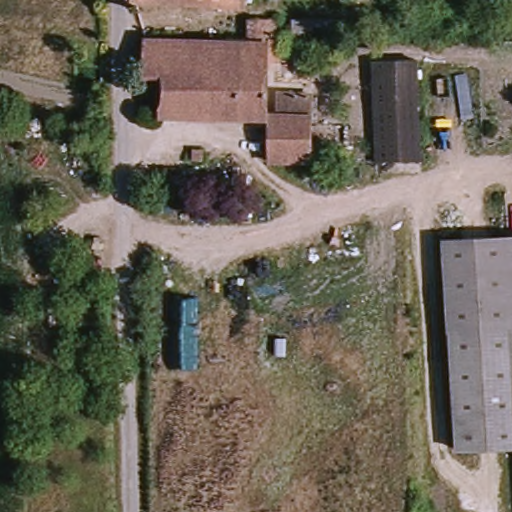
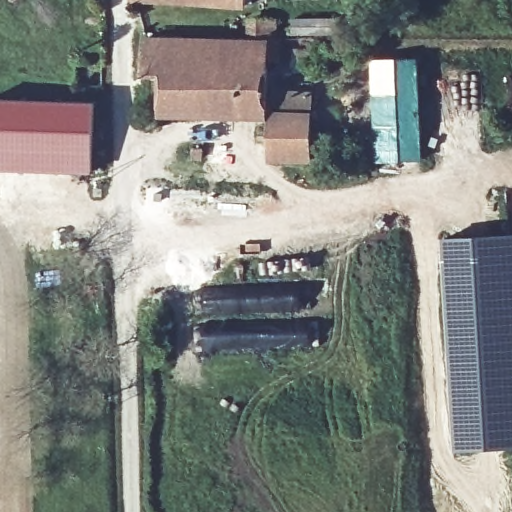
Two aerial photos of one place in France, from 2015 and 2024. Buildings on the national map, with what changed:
unchanged [(245,11),(229,8),(141,7),(142,0),(246,0),(245,11)]
unchanged [(269,9),(260,0),(269,0),(269,9)]
unchanged [(208,117),(163,115),(165,78),(245,82),(247,47),(261,48),(264,24),(282,25),(280,42),(285,42),(285,64),(273,62),(266,120),(208,117)]
unchanged [(247,47),(245,82),(165,78),(146,78),(146,44),(247,47)]
unchanged [(379,164),(375,63),(423,62),(426,158),(379,164)]
unchanged [(274,168),(277,117),(292,118),(294,89),(313,91),(311,170),(274,168)]
new [(93,172),(0,168),(0,99),(95,103),(93,172)]
unchanged [(455,335),(447,240),(512,237),(512,331),(455,335)]
unchanged [(460,447),(455,335),(512,331),(512,444),(460,447)]

